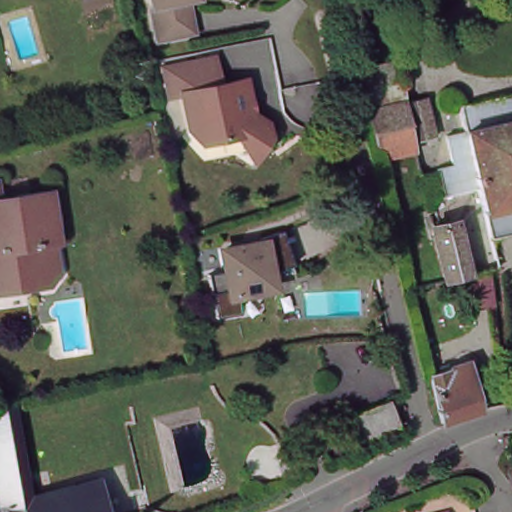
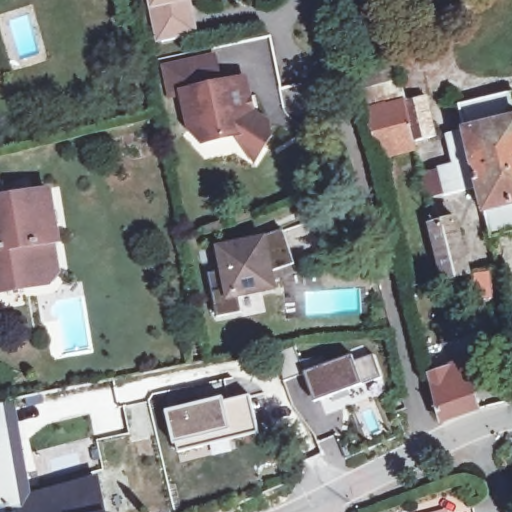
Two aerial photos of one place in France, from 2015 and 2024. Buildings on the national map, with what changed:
unchanged [(164,36),(156,0),(189,0),(195,29),(164,36)]
unchanged [(212,54),(219,85),(244,79),(252,114),(270,126),(272,135),(265,147),(244,134),(205,142),(192,127),(185,93),(170,96),(164,65),(212,54)]
unchanged [(361,74),(360,69),(395,61),(404,101),(426,96),(435,136),(414,141),(415,150),(381,158),(361,74)]
unchanged [(512,92),(512,232),(490,236),(480,188),(445,196),(438,169),(454,166),(447,134),(465,131),(459,105),(512,92)]
unchanged [(1,206),(20,202),(19,199),(49,195),(57,241),(50,243),(55,272),(45,285),(22,288),(21,282),(1,285),(2,292),(0,292),(0,200),(1,206)]
unchanged [(421,226),(455,215),(473,272),(440,282),(421,226)]
unchanged [(301,263),(276,271),(279,286),(245,292),(249,311),(224,316),(215,272),(233,269),(229,249),(269,241),(268,236),(290,229),(301,263)]
unchanged [(497,305),(477,309),(472,277),(471,273),(474,273),(491,271),(497,305)]
new [(353,355),(363,386),(315,403),(305,373),(353,355)]
unchanged [(432,375),(465,362),(479,408),(470,411),(449,419),(442,422),(432,375)]
new [(224,397),(224,400),(250,395),(260,434),(177,456),(165,411),(224,397)]
unchanged [(390,399),(390,400),(402,428),(357,447),(347,417),(390,400),(390,399)]
unchanged [(100,481),(108,512),(7,512),(7,508),(4,500),(0,500),(0,406),(10,405),(22,475),(25,475),(28,499),(69,489),(100,481)]
unchanged [(295,471),(282,473),(280,461),(292,458),(295,471)]
unchanged [(446,510),(447,512),(438,512),(446,510)]

